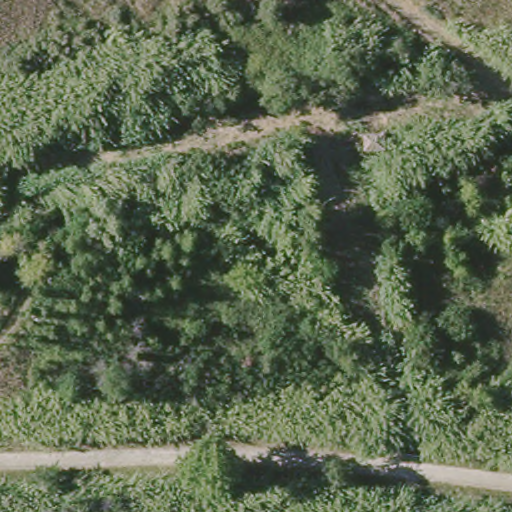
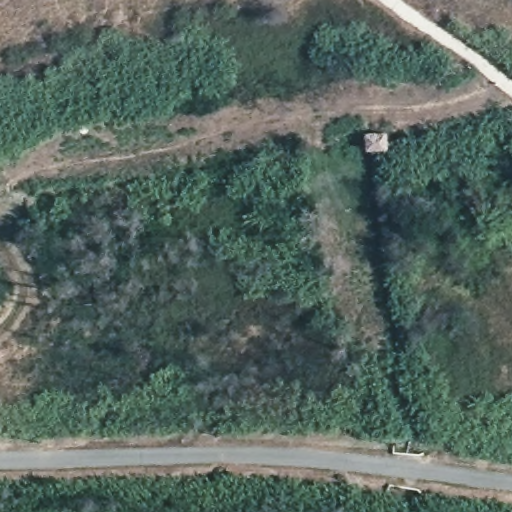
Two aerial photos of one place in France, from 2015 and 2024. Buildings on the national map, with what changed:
unchanged [(388,153),(368,155),(367,141),(387,138),(388,153)]

